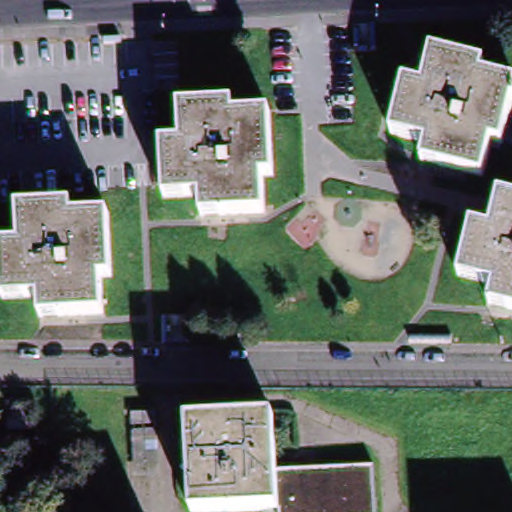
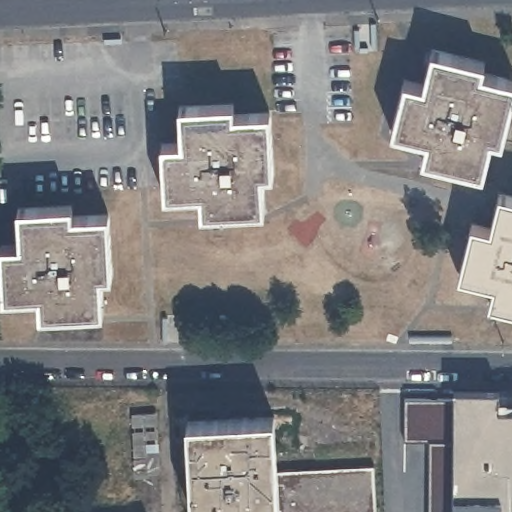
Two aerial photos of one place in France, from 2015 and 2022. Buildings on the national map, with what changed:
unchanged [(487,176),(426,162),(431,142),(395,134),(408,81),(427,86),(435,52),(489,64),(486,75),(512,81),(512,118),(505,145),(503,144),(502,150),(493,148),(487,176)]
unchanged [(268,212),(206,215),(205,196),(170,197),(167,144),(185,143),(183,107),(237,104),(237,114),(274,113),(277,176),(266,177),(268,212)]
unchanged [(496,284),(460,276),(472,225),(492,229),(500,194),(512,197),(512,308),(490,303),(496,284)]
unchanged [(111,279),(101,280),(103,315),(41,317),(40,297),(2,299),(0,247),(19,246),(18,210),(70,207),(70,219),(108,217),(111,279)]
new [(512,409),(512,512),(430,512),(430,439),(404,438),(405,401),(454,401),(454,390),(496,391),(496,410),(512,409)]
unchanged [(11,431),(10,412),(30,411),(31,430),(11,431)]
unchanged [(133,455),(131,413),(154,412),(155,454),(133,455)]
unchanged [(275,417),(277,471),(278,510),(216,512),(190,512),(186,421),(275,417)]
unchanged [(372,467),(375,512),(278,512),(278,510),(277,471),(372,467)]

